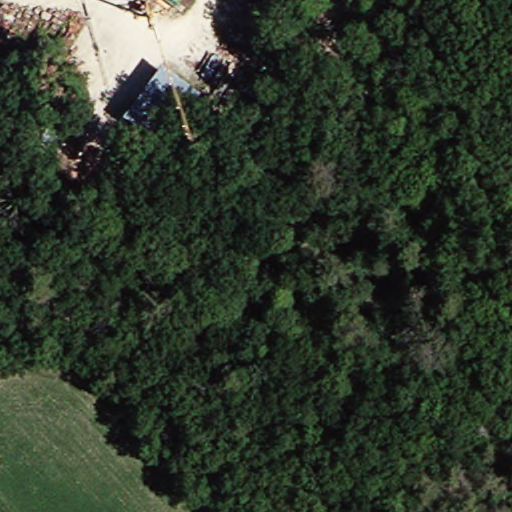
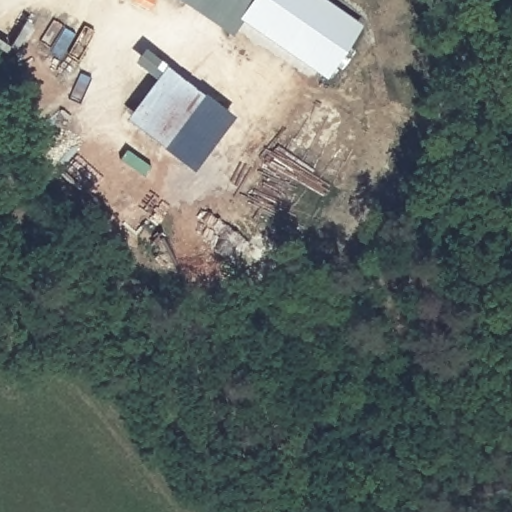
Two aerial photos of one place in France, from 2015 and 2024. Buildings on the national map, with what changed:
demolished [(169,0),(189,0),(182,9),(169,0)]
new [(330,74),(244,20),(235,30),(189,0),(330,0),(364,22),(330,74)]
demolished [(236,0),(259,0),(252,12),(236,0)]
new [(202,96),(168,146),(128,117),(165,67),(202,96)]

